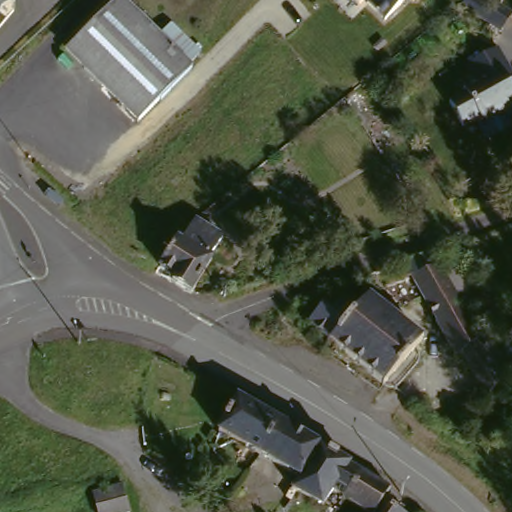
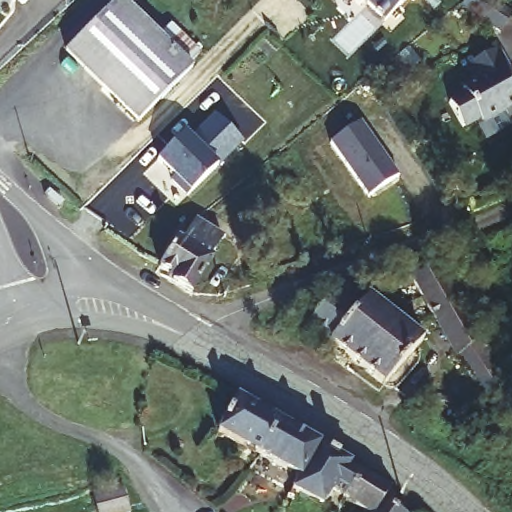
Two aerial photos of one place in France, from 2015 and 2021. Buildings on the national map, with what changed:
unchanged [(116,0),(185,70),(131,124),(62,56),(116,0)]
unchanged [(363,1),(357,7),(349,0),(409,0),(385,22),(363,1)]
unchanged [(502,33),(462,4),(467,0),(495,0),(512,12),(512,20),(508,25),(502,33)]
unchanged [(473,84),(466,70),(496,53),(506,71),(512,83),(512,95),(510,96),(512,101),(512,120),(505,124),(501,117),(479,130),(475,121),(458,130),(446,108),(462,99),(460,92),(473,84)]
new [(184,133),(190,139),(216,113),(242,140),(187,195),(171,179),(175,176),(158,159),(184,133)]
new [(362,120),(398,171),(368,193),(332,142),(362,120)]
unchanged [(179,238),(182,240),(197,222),(224,244),(187,294),(167,282),(170,278),(157,270),(179,238)]
unchanged [(483,395),(439,322),(434,325),(409,278),(401,282),(392,266),(431,255),(433,261),(448,255),(471,298),(457,305),(478,345),(489,345),(487,356),(512,347),(512,368),(503,370),(483,395)]
unchanged [(420,342),(383,391),(303,328),(319,309),(327,315),(338,301),(352,312),(365,296),(412,333),(420,342)]
unchanged [(214,438),(235,405),(273,428),(255,461),(214,438)]
unchanged [(315,455),(297,483),(255,461),(273,428),(315,455)]
unchanged [(315,455),(384,497),(376,507),(372,512),(350,512),(326,498),(317,511),(290,495),(297,483),(315,455)]
unchanged [(117,488),(124,512),(92,512),(89,500),(88,498),(117,488)]
unchanged [(383,512),(372,512),(376,507),(383,512)]

